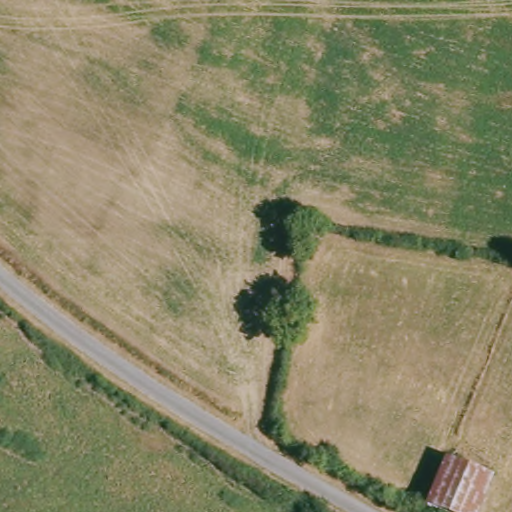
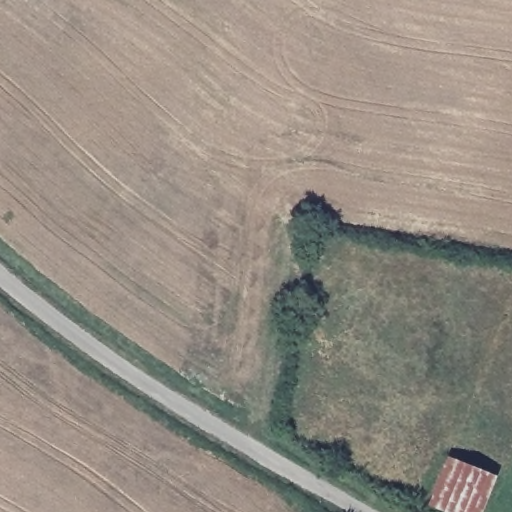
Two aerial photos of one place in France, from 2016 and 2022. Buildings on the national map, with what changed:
unchanged [(495,476),(480,512),(450,512),(430,503),(450,455),(495,476)]

